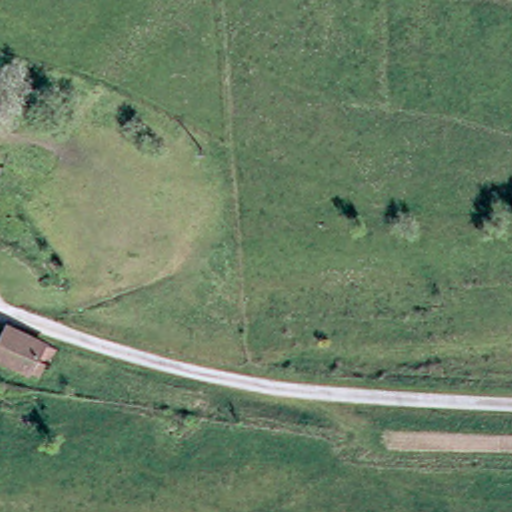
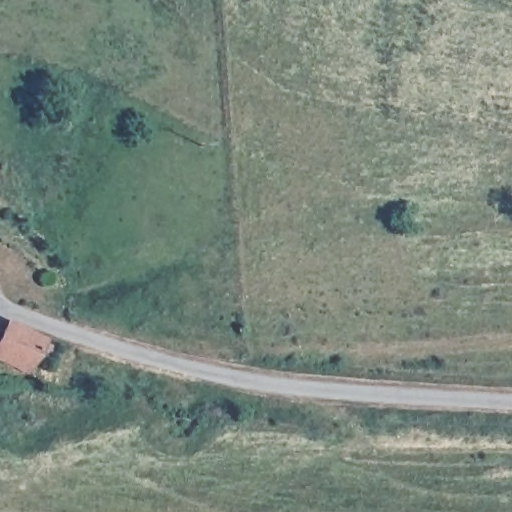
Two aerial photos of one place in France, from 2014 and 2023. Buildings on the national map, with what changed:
unchanged [(0,352),(0,325),(7,316),(48,345),(40,358),(32,375),(20,367),(0,352)]

